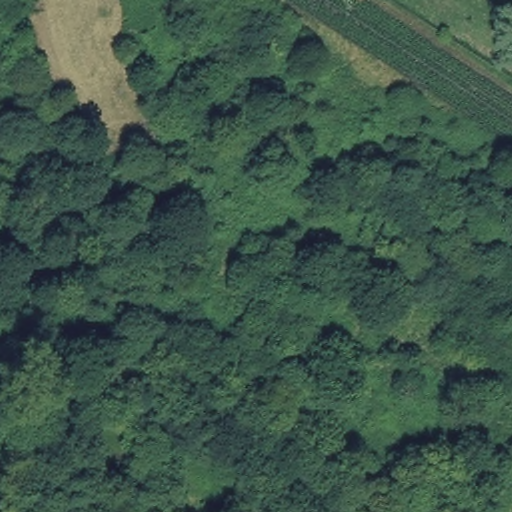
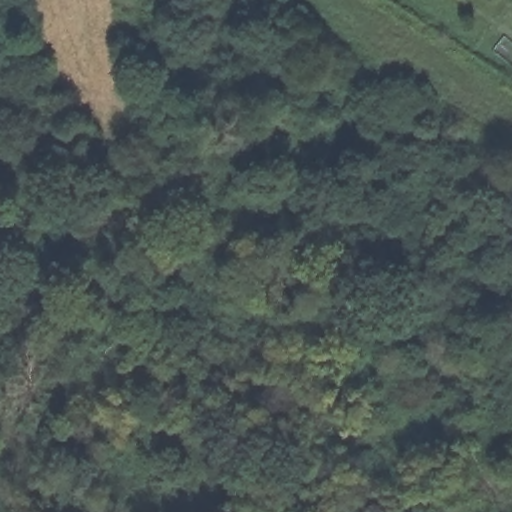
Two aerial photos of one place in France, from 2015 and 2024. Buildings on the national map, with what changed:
[]

